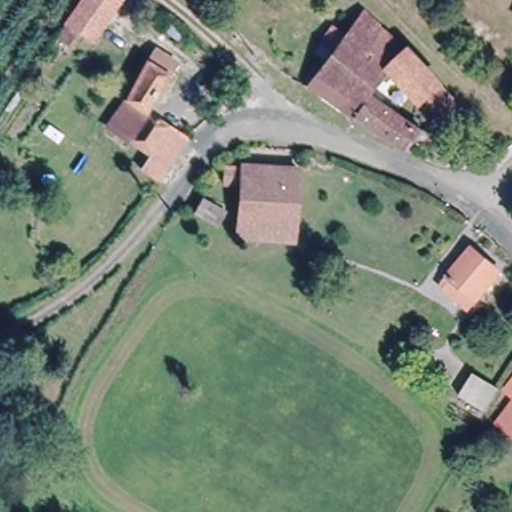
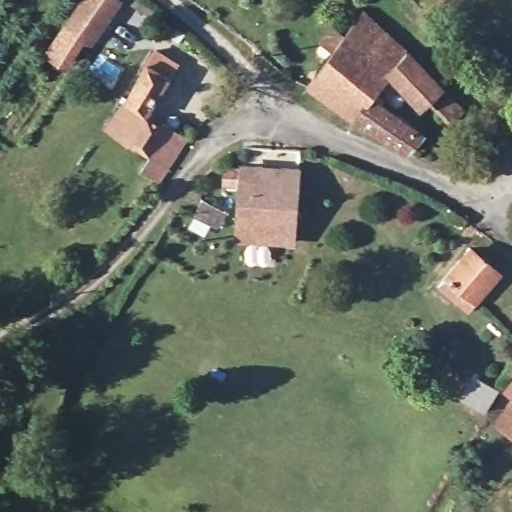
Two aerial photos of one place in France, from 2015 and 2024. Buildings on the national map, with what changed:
unchanged [(85,31),(76,46),(60,37),(70,22),(83,0),(117,0),(95,38),(85,31)]
unchanged [(372,10),(411,50),(476,118),(465,130),(430,99),(425,107),(398,81),(382,102),(430,138),(420,155),(310,89),(372,10)]
unchanged [(164,184),(149,177),(155,166),(105,127),(157,53),(181,72),(153,113),(195,143),(164,184)]
unchanged [(269,230),(249,227),(230,224),(235,180),(225,179),(226,172),(226,168),(236,171),(296,179),(305,181),(300,210),(297,234),(269,230)]
unchanged [(221,226),(195,213),(205,194),(228,207),(221,226)]
unchanged [(480,310),(446,283),(473,246),(505,270),(480,310)]
unchanged [(467,392),(473,384),(483,368),(508,387),(499,403),(491,398),(489,408),(467,392)]
unchanged [(512,380),(512,384),(510,383),(512,380)]
unchanged [(512,415),(512,433),(504,428),(512,415)]

